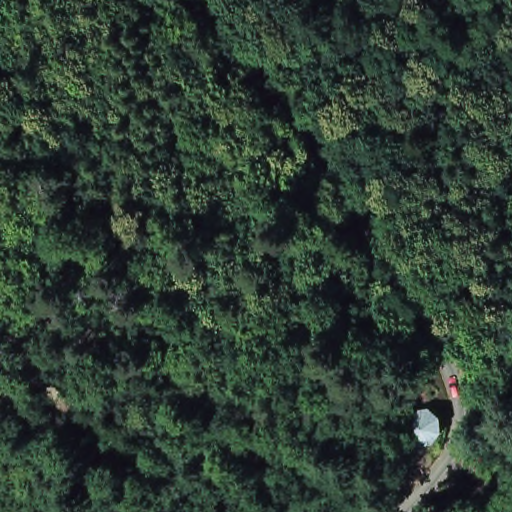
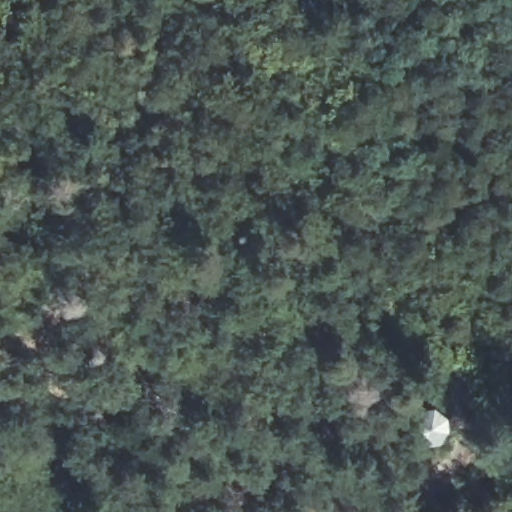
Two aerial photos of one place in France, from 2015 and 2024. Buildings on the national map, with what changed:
unchanged [(435,413),(443,424),(441,436),(431,445),(418,443),(410,432),(410,428),(411,420),(421,412),(435,413)]

